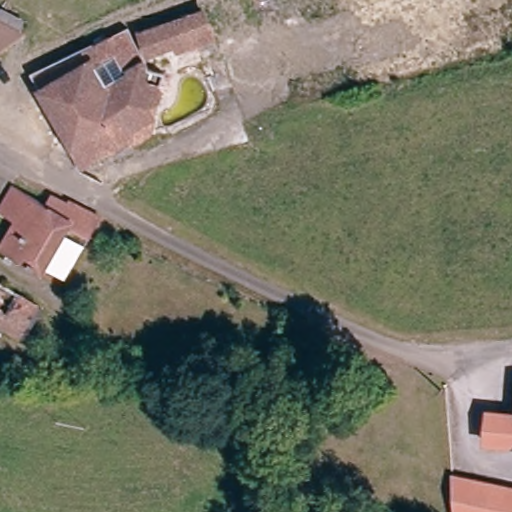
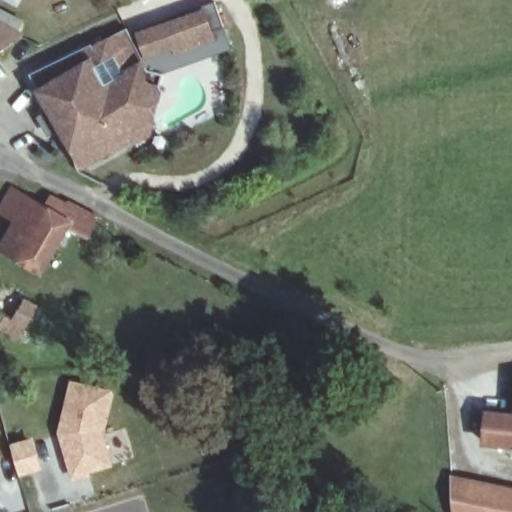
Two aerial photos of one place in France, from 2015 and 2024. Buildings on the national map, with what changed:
unchanged [(186,50),(163,58),(155,34),(214,17),(222,14),(234,47),(224,49),(189,58),(186,50)]
unchanged [(22,37),(0,50),(0,26),(9,29),(22,37)]
unchanged [(87,45),(90,52),(136,37),(155,75),(161,76),(159,89),(160,96),(159,104),(150,123),(142,136),(125,144),(118,136),(112,140),(100,138),(94,130),(71,139),(35,64),(87,45)]
unchanged [(0,242),(11,220),(0,214),(0,200),(6,188),(37,202),(41,194),(58,201),(62,200),(94,216),(84,237),(65,227),(40,270),(0,250),(0,242)]
unchanged [(23,334),(0,323),(0,289),(37,307),(23,334)]
new [(74,381),(113,391),(104,431),(114,467),(92,474),(94,476),(74,480),(59,433),(74,381)]
unchanged [(484,439),(487,410),(512,413),(512,442),(484,439)]
new [(0,463),(0,459),(1,462),(0,463)]
unchanged [(449,512),(449,482),(512,493),(512,512),(449,512)]

